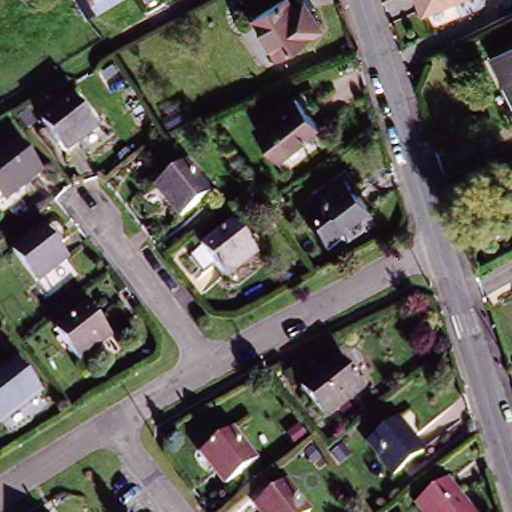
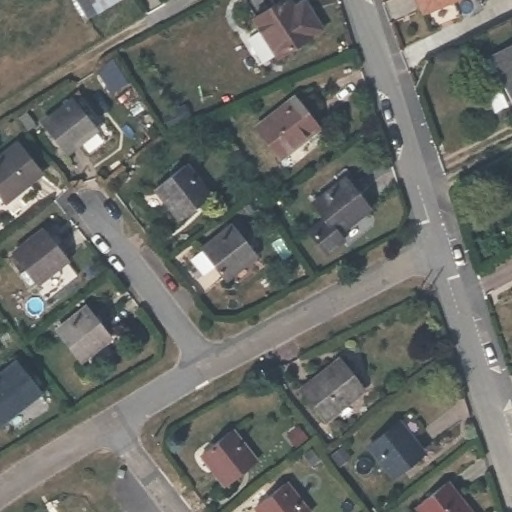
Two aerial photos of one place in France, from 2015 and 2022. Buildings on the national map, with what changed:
unchanged [(88,22),(76,0),(121,0),(88,22)]
unchanged [(415,11),(411,0),(442,0),(415,11)]
unchanged [(267,66),(245,25),(282,3),(287,15),(300,9),(315,39),(267,66)]
unchanged [(486,50),(512,38),(512,107),(511,108),(486,50)]
unchanged [(269,143),(250,120),(289,87),(307,112),(269,143)]
unchanged [(58,152),(40,126),(71,102),(90,128),(58,152)]
unchanged [(0,197),(0,164),(11,155),(33,184),(5,205),(0,197)]
unchanged [(178,218),(156,190),(185,166),(208,196),(178,218)]
unchanged [(333,255),(316,232),(330,222),(317,205),(350,179),(375,209),(341,235),(347,244),(333,255)]
unchanged [(225,281),(201,250),(231,226),(255,255),(225,281)]
unchanged [(39,285),(17,253),(47,232),(68,264),(39,285)]
unchanged [(76,361),(57,333),(90,312),(107,340),(76,361)]
unchanged [(317,411),(296,382),(335,352),(355,381),(317,411)]
unchanged [(0,378),(15,368),(34,397),(0,419),(0,378)]
unchanged [(390,480),(364,446),(389,426),(415,458),(390,480)]
unchanged [(218,486),(199,457),(234,436),(252,464),(218,486)]
unchanged [(282,484),(304,512),(303,512),(254,512),(252,510),(282,484)]
unchanged [(452,512),(410,512),(435,492),(452,512)]

